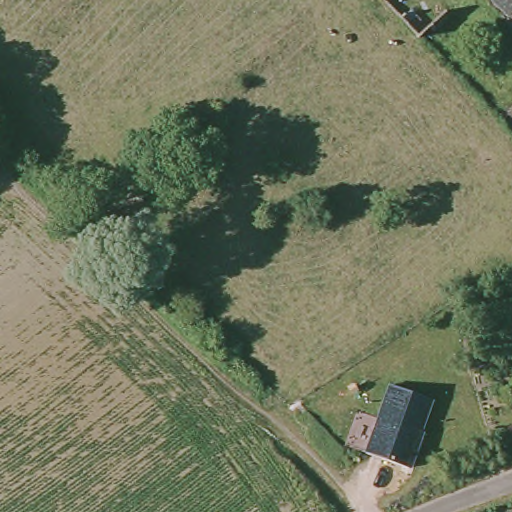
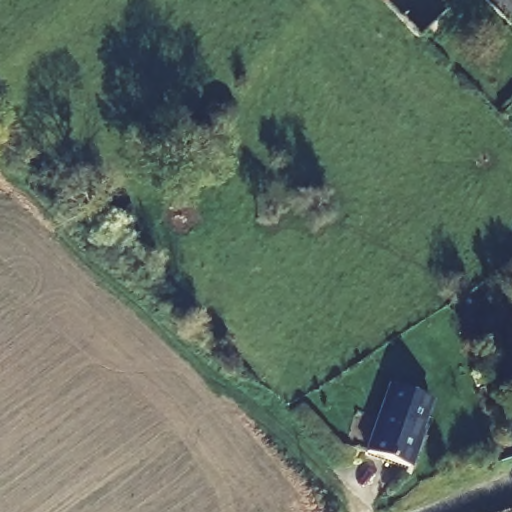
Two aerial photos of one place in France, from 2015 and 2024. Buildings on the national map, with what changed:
unchanged [(390,384),(430,398),(414,445),(415,445),(407,467),(365,452),(390,384)]

